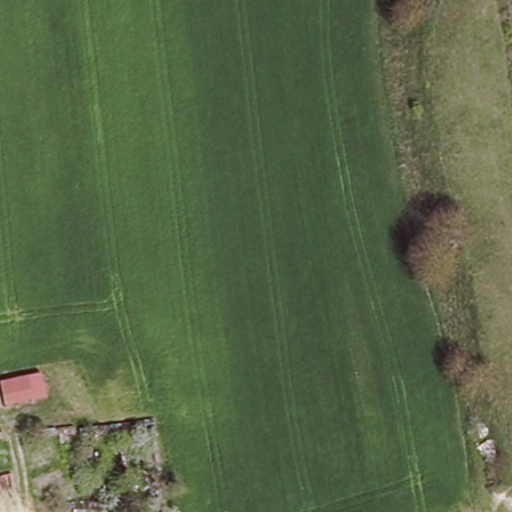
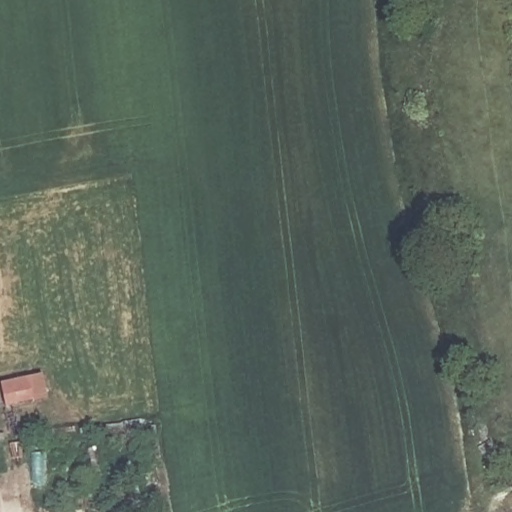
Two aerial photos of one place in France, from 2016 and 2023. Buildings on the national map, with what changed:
unchanged [(9,407),(3,383),(43,373),(52,398),(9,407)]

